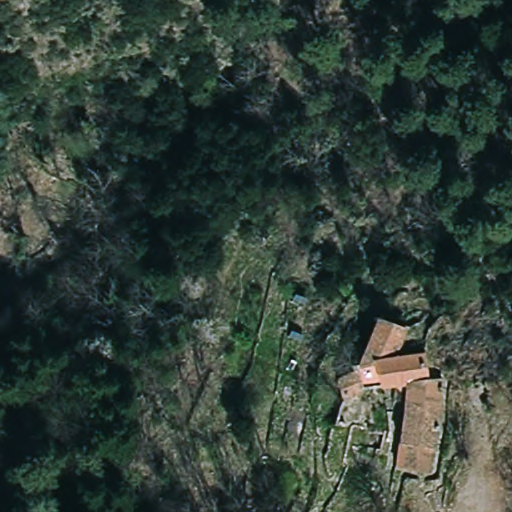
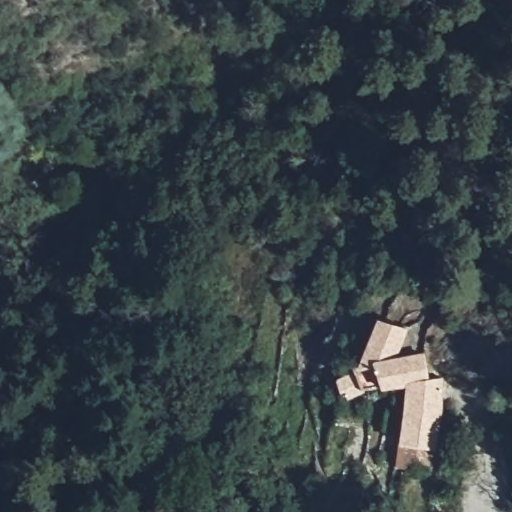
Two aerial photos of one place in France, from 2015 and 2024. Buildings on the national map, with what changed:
unchanged [(430,385),(439,385),(445,385),(440,449),(435,480),(423,479),(412,476),(393,470),(394,463),(405,386),(347,393),(341,379),(357,366),(372,321),(400,336),(391,360),(420,363),(425,365),(430,385)]

